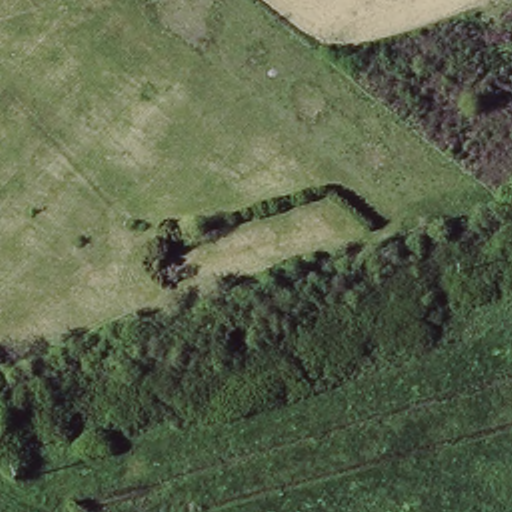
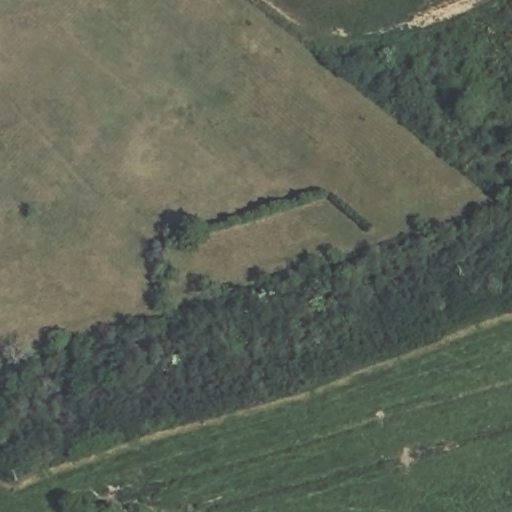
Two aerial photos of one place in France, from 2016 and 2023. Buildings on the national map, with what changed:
[]

